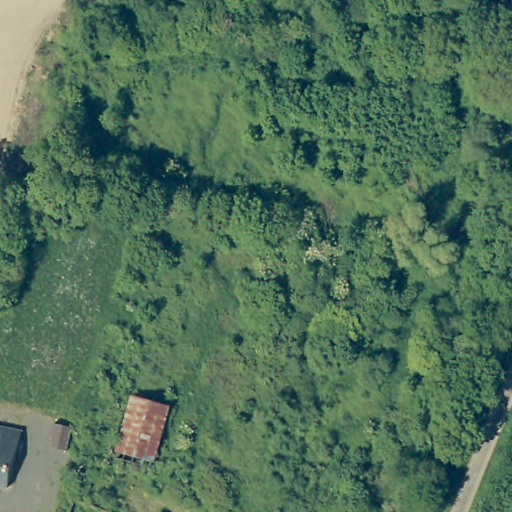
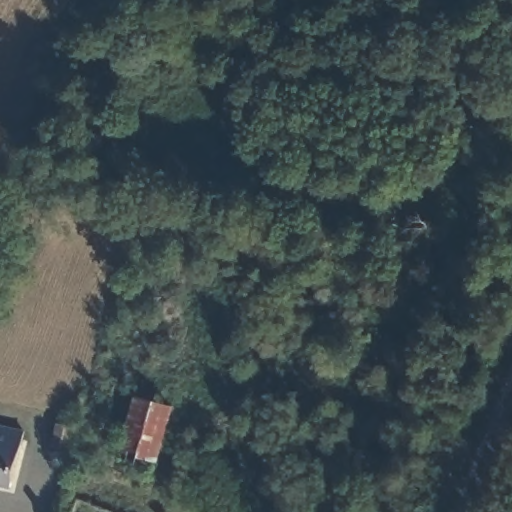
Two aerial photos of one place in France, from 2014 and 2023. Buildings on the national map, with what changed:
unchanged [(117,459),(104,456),(107,443),(121,445),(135,384),(170,393),(156,451),(152,468),(117,459)]
unchanged [(30,438),(19,495),(0,491),(0,431),(30,438)]

